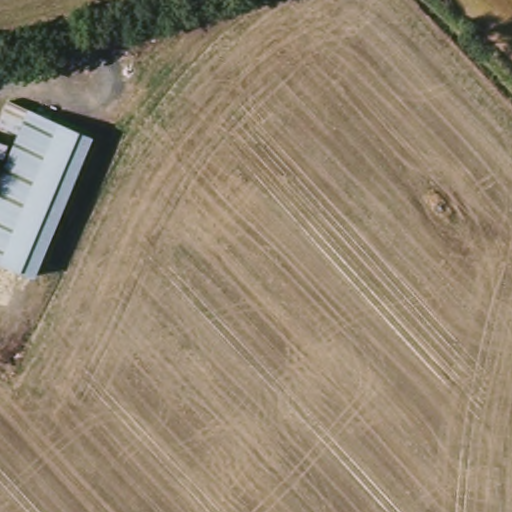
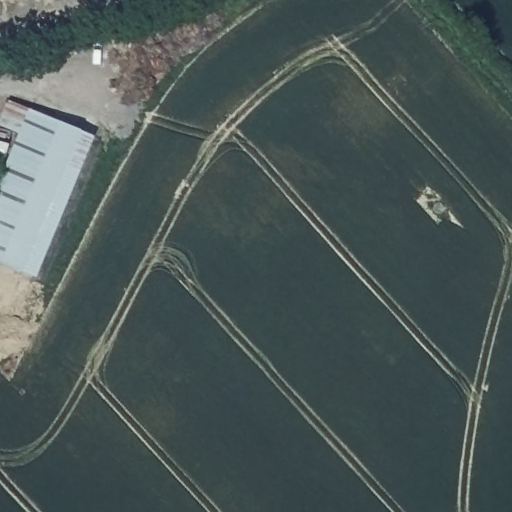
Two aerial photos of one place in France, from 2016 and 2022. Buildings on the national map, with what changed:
unchanged [(0,260),(0,244),(38,138),(15,132),(24,106),(98,133),(45,276),(0,260)]

